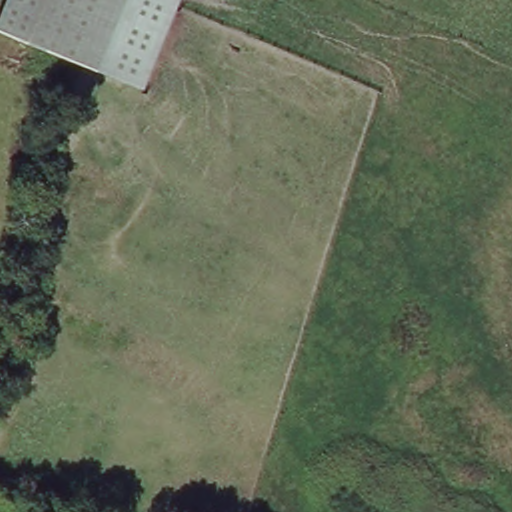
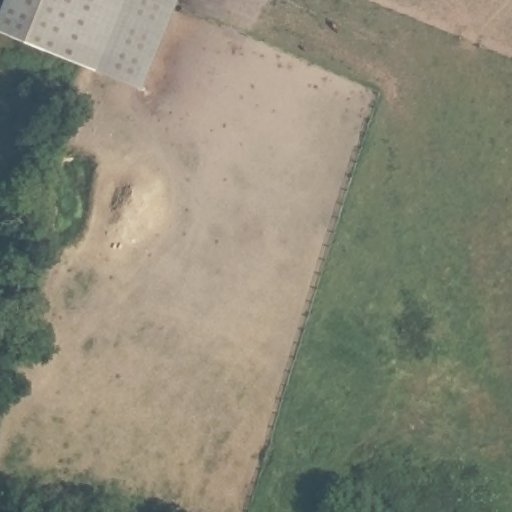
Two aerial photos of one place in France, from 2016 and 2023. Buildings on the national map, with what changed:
unchanged [(0,27),(0,13),(5,0),(185,0),(144,92),(0,27)]

